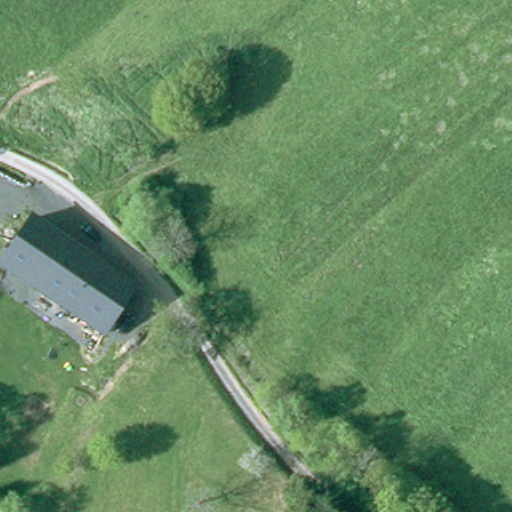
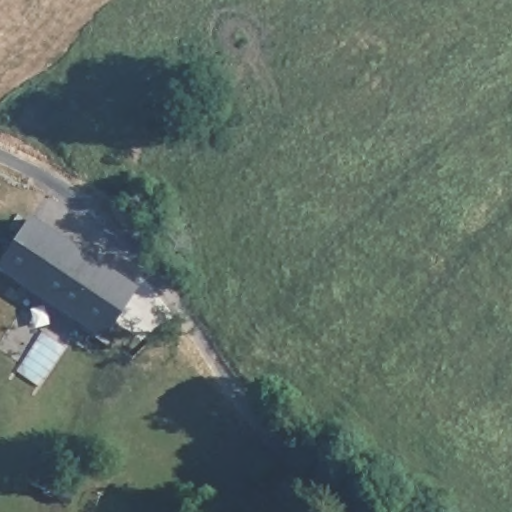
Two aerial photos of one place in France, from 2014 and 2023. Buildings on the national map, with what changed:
unchanged [(0,269),(0,268),(28,224),(127,288),(114,313),(100,335),(0,269)]

